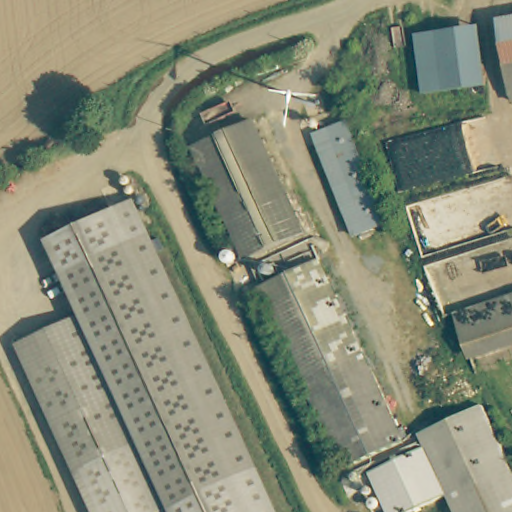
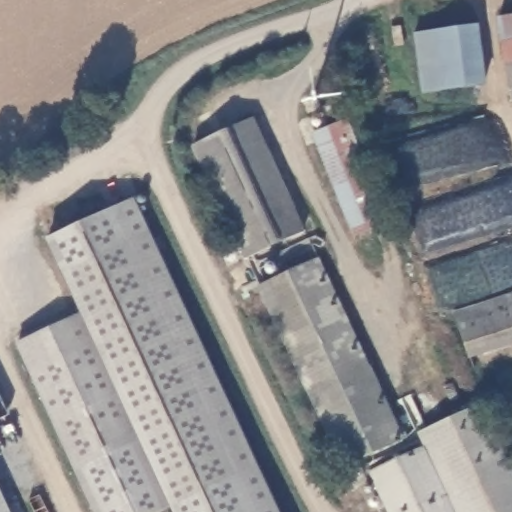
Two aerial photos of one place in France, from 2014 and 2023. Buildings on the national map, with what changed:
unchanged [(512,11),(512,50),(501,51),(498,13),(512,11)]
unchanged [(477,27),(482,86),(418,90),(414,31),(477,27)]
unchanged [(504,93),(501,51),(512,50),(512,92),(504,93)]
unchanged [(248,113),(303,226),(244,259),(189,143),(248,113)]
unchanged [(387,224),(355,237),(313,136),(344,122),(387,224)]
unchanged [(169,508),(161,512),(93,512),(15,343),(80,315),(46,238),(134,199),(278,512),(171,512),(169,508)]
unchanged [(309,258),(404,434),(348,463),(254,288),(309,258)]
unchanged [(469,360),(454,312),(512,294),(512,345),(469,360)]
unchanged [(468,406),(477,402),(512,472),(512,512),(450,512),(411,436),(468,406)]
unchanged [(368,472),(418,450),(441,495),(406,512),(388,512),(368,472)]
new [(0,493),(9,512),(0,512),(0,493)]

